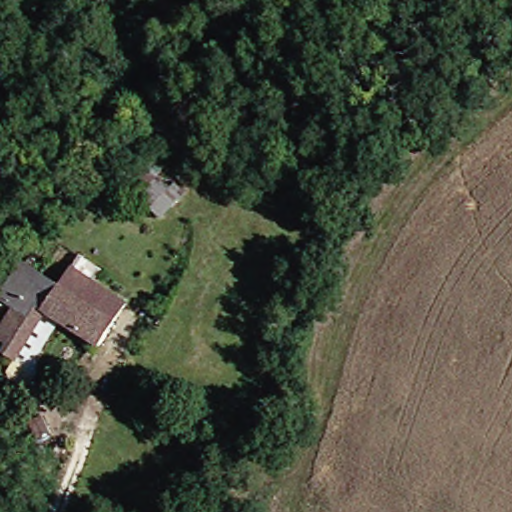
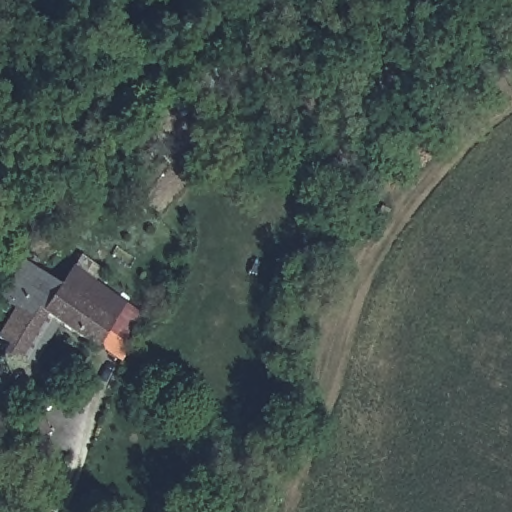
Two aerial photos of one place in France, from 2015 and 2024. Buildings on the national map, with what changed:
unchanged [(112,341),(54,315),(26,367),(10,359),(13,351),(8,349),(22,317),(10,311),(27,273),(66,290),(75,269),(114,286),(105,307),(124,315),(112,341)]
unchanged [(179,311),(172,323),(161,317),(167,305),(179,311)]

